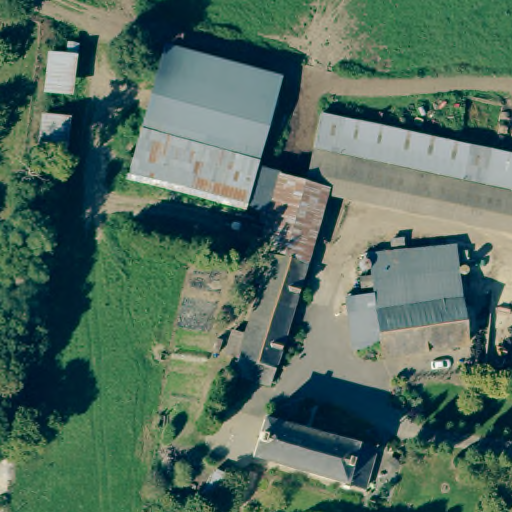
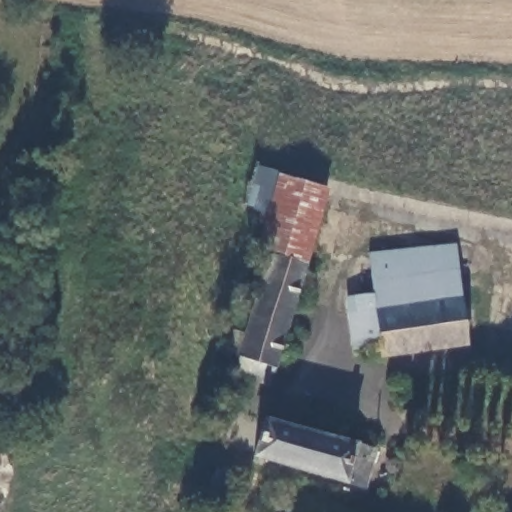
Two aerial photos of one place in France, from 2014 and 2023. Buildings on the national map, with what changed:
demolished [(250,211),(127,181),(167,44),(285,73),(262,169),(250,211)]
demolished [(387,162),(442,175),(449,141),(512,155),(512,223),(307,174),(313,145),(387,162)]
unchanged [(262,171),(301,182),(291,222),(276,218),(268,248),(244,242),(262,171)]
unchanged [(326,188),(308,257),(270,249),(268,248),(276,218),(291,222),(301,182),(326,188)]
unchanged [(367,252),(452,241),(456,262),(371,275),(367,252)]
unchanged [(308,257),(280,366),(242,355),(270,249),(308,257)]
unchanged [(346,312),(376,308),(371,275),(456,262),(466,338),(382,350),(381,341),(351,345),(346,312)]
unchanged [(258,424),(260,421),(367,451),(358,488),(249,458),(258,424)]

